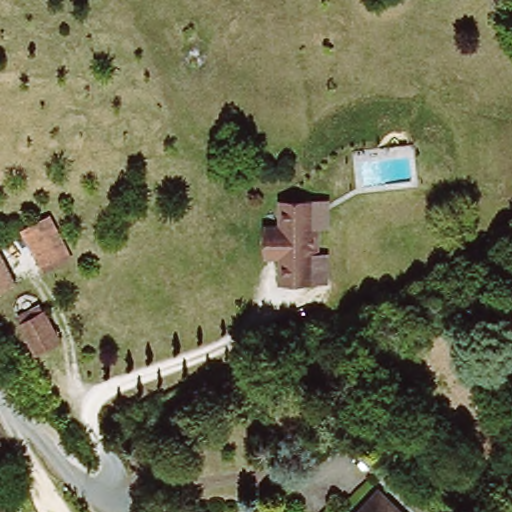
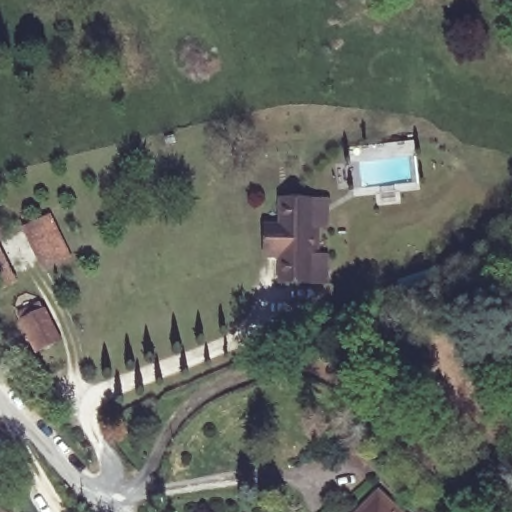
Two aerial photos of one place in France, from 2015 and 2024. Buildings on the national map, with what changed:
unchanged [(289,215),(318,216),(318,244),(324,244),(324,267),(316,266),(316,285),(287,285),(288,259),(280,259),(274,259),(274,240),(281,240),(288,240),(289,215)]
unchanged [(53,216),(73,257),(43,271),(23,227),(53,216)]
unchanged [(0,292),(0,245),(20,282),(0,292)]
unchanged [(45,311),(48,310),(63,341),(34,355),(18,320),(20,318),(18,315),(43,304),(45,311)]
unchanged [(384,491),(406,512),(363,512),(384,491)]
unchanged [(17,512),(0,512),(0,500),(6,497),(17,512)]
unchanged [(60,507),(63,512),(53,512),(60,507)]

